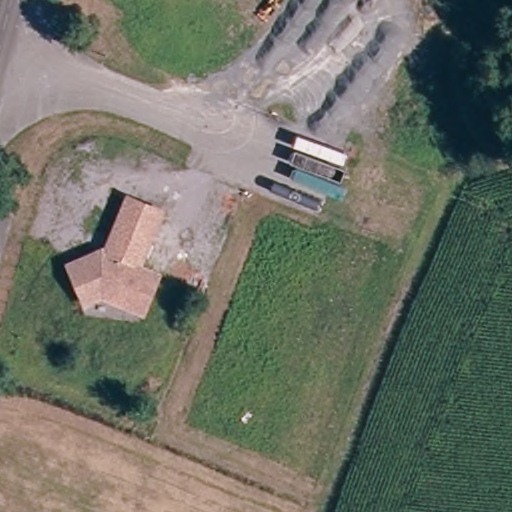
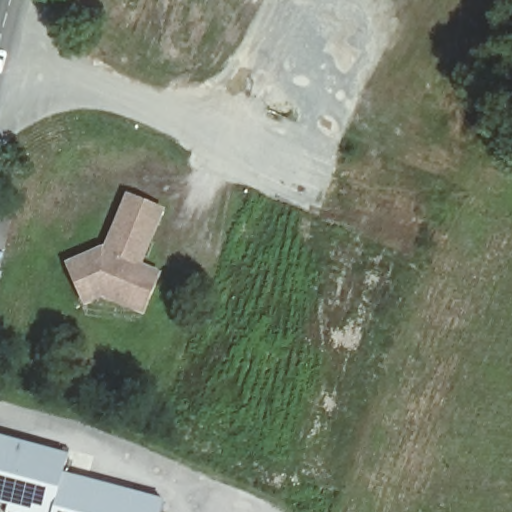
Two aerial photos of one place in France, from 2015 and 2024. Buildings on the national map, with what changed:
unchanged [(104,249),(124,193),(159,205),(138,261),(159,268),(145,308),(104,293),(87,301),(69,262),(85,254),(100,247),(104,249)]
new [(57,512),(10,512),(11,509),(0,506),(0,436),(71,457),(57,512)]
new [(166,500),(164,512),(57,512),(67,474),(166,500)]

